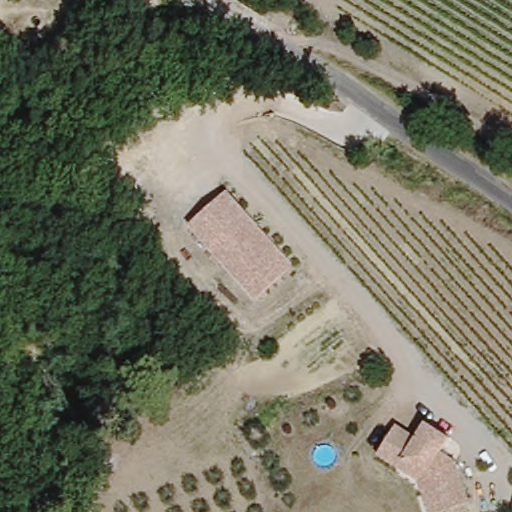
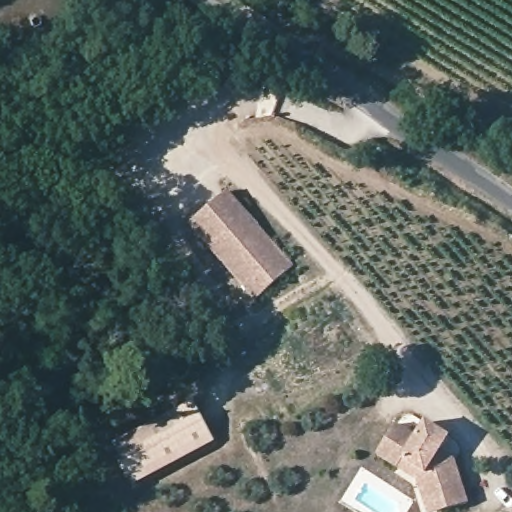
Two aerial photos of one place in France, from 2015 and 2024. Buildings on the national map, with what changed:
unchanged [(225,190),(300,260),(265,296),(190,226),(225,190)]
new [(139,480),(118,442),(195,399),(216,438),(139,480)]
unchanged [(420,475),(402,465),(382,452),(402,420),(420,431),(430,416),(454,431),(445,446),(466,460),(481,497),(449,507),(437,511),(420,475)]
unchanged [(512,487),(512,510),(505,510),(506,487),(512,487)]

